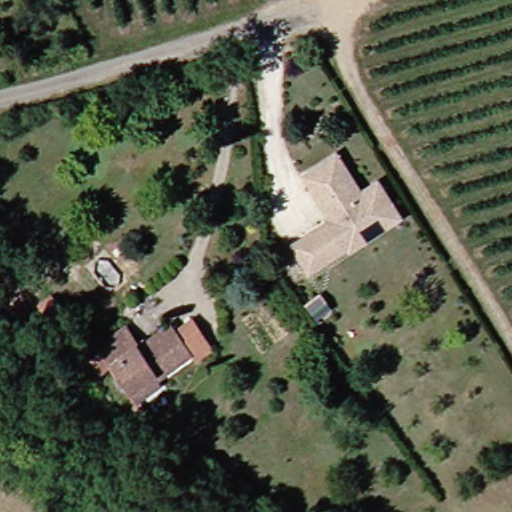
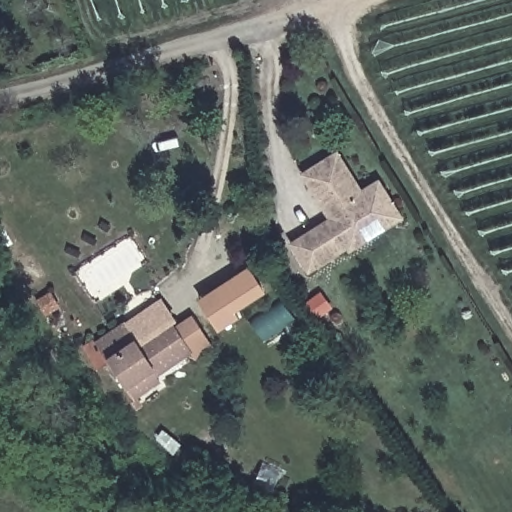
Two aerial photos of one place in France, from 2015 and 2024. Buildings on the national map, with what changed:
unchanged [(302,172),(335,150),(360,189),(377,179),(392,202),(400,215),(366,236),(349,247),(347,243),(308,268),(291,241),(324,220),(330,216),(302,172)]
new [(246,268),(261,291),(233,310),(237,319),(217,331),(197,299),(246,268)]
unchanged [(310,302),(321,317),(310,325),(299,310),(310,302)]
unchanged [(146,407),(137,394),(119,369),(105,378),(94,362),(104,355),(100,348),(125,330),(138,348),(173,321),(177,327),(192,316),(215,346),(199,358),(196,354),(163,376),(171,386),(146,407)]

